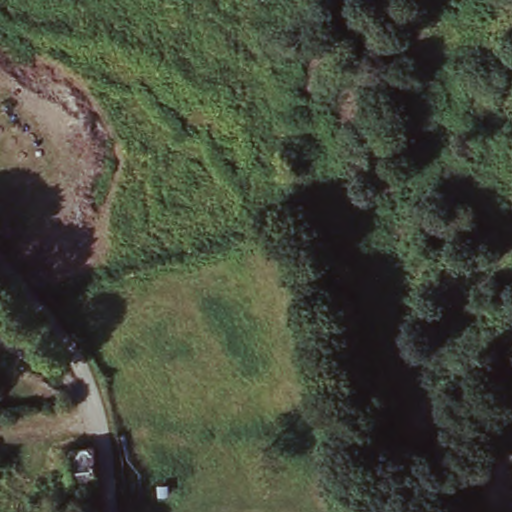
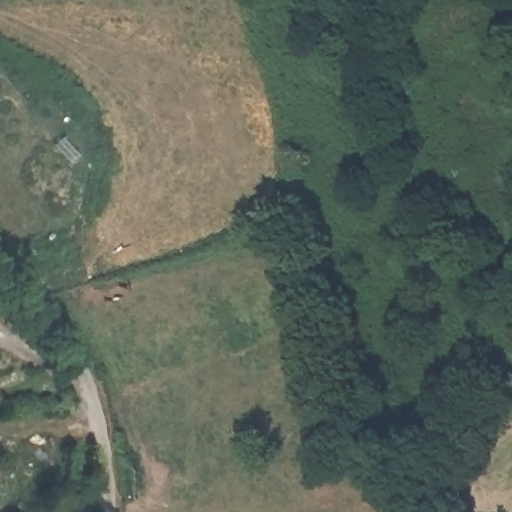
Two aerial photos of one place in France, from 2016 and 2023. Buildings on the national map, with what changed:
unchanged [(74,483),(69,450),(91,449),(95,481),(74,483)]

